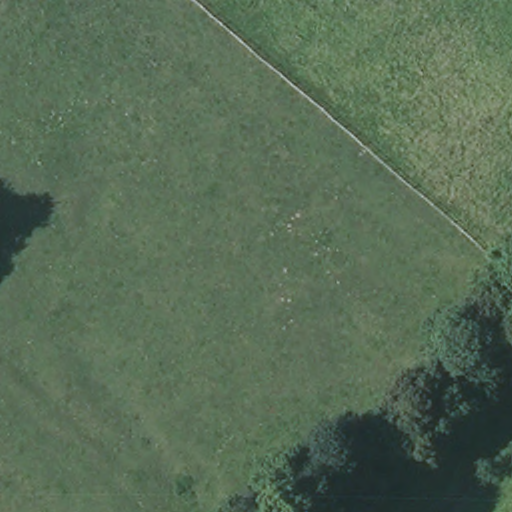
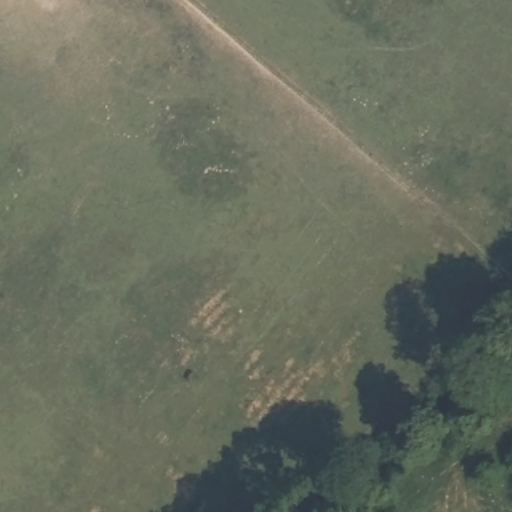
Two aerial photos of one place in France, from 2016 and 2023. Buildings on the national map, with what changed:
[]

